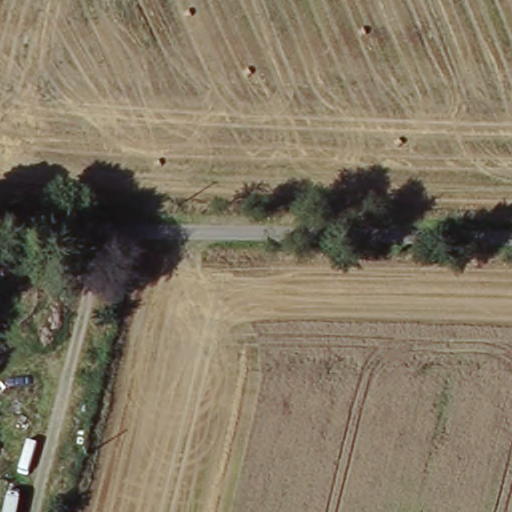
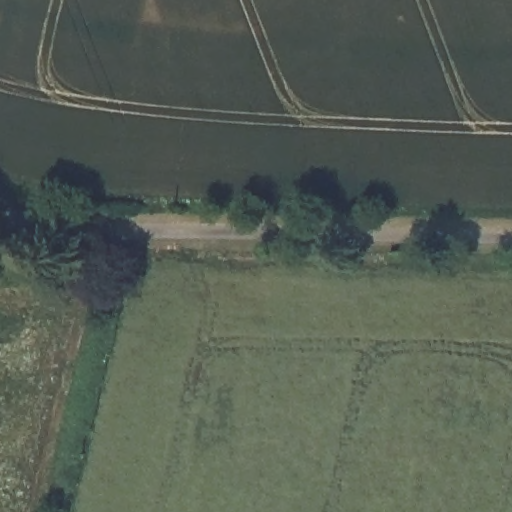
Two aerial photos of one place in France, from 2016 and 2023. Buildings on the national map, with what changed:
[]

